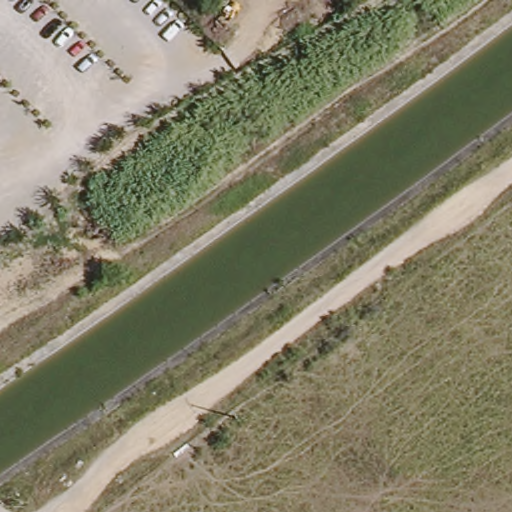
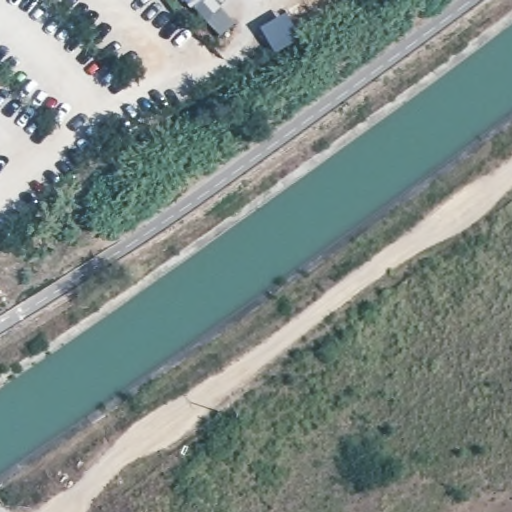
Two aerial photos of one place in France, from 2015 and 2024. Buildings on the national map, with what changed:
new [(214,0),(234,22),(216,40),(180,0),(214,0)]

